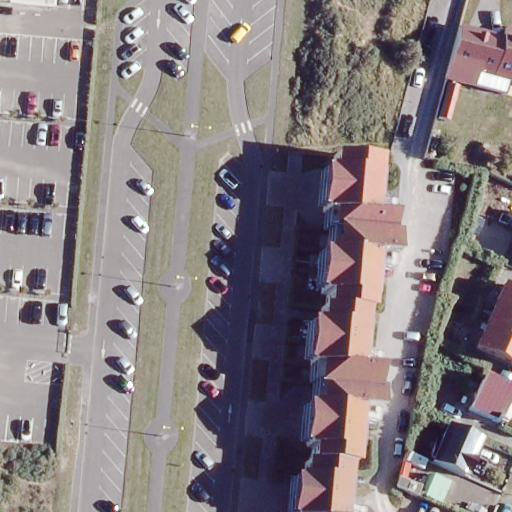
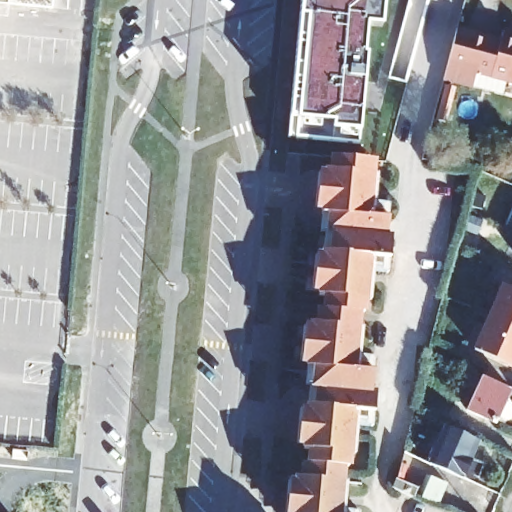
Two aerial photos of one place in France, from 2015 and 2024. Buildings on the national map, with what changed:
new [(338,130),(337,140),(297,137),(307,15),(302,15),(303,0),(382,0),(381,23),(367,22),(359,131),(338,130)]
new [(449,1),(446,0),(449,0),(449,1)]
unchanged [(482,71),(479,86),(450,78),(462,29),(505,40),(496,75),(482,71)]
unchanged [(505,40),(509,29),(512,29),(512,79),(496,75),(505,40)]
unchanged [(331,211),(324,210),(325,201),(327,171),(327,167),(332,167),(334,152),(374,156),(369,213),(389,215),(387,236),(365,234),(352,232),(334,231),(329,230),(331,211)]
unchanged [(320,399),(321,384),(316,384),(318,365),(311,365),(311,360),(315,321),(320,321),(322,307),(326,307),(327,293),(321,292),(325,249),(332,249),(334,231),(352,232),(365,234),(387,236),(392,236),(390,256),(369,255),(364,311),(358,310),(352,365),(352,367),(373,369),(371,389),(376,390),(375,404),(320,399)]
unchanged [(505,281),(512,284),(512,360),(476,345),(479,338),(505,281)]
unchanged [(507,381),(498,405),(501,406),(497,415),(467,402),(481,370),(507,381)]
unchanged [(310,460),(314,460),(314,458),(315,448),(311,448),(312,436),(315,401),(320,401),(320,399),(375,404),(375,410),(356,408),(353,440),(351,461),(351,465),(346,464),(345,478),(341,512),(297,512),(301,474),(308,475),(310,460)]
unchanged [(451,424),(480,436),(464,471),(436,458),(451,424)]

